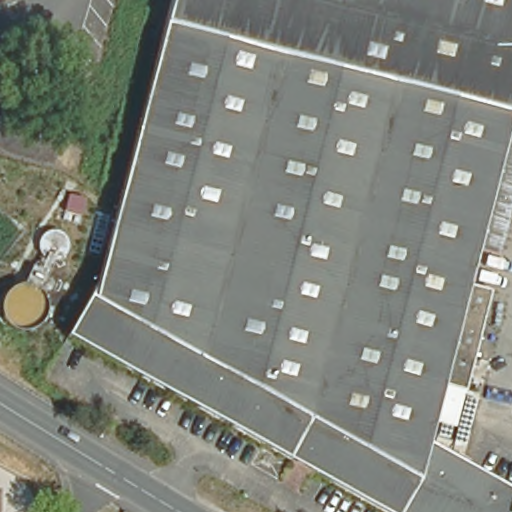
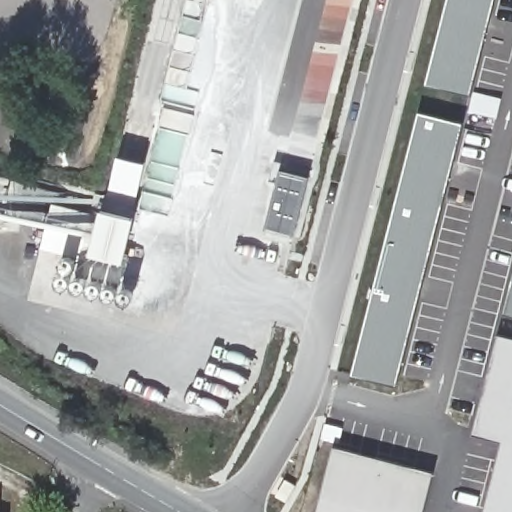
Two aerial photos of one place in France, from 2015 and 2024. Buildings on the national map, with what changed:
demolished [(431,436),(512,483),(512,490),(500,512),(380,512),(67,333),(101,273),(170,0),(512,0),(512,214),(493,291),(472,285),(445,385),(431,436)]
new [(471,91),(430,81),(451,0),(494,0),(471,91)]
new [(421,111),(461,122),(398,384),(354,375),(421,111)]
new [(309,177),(295,237),(266,230),(283,170),(309,177)]
new [(100,208),(133,216),(121,264),(41,248),(52,203),(98,215),(100,208)]
new [(512,291),(512,314),(507,313),(512,291)]
new [(474,435),(499,335),(512,338),(512,512),(482,512),(498,440),(474,435)]
new [(319,512),(335,447),(431,473),(422,512),(319,512)]

